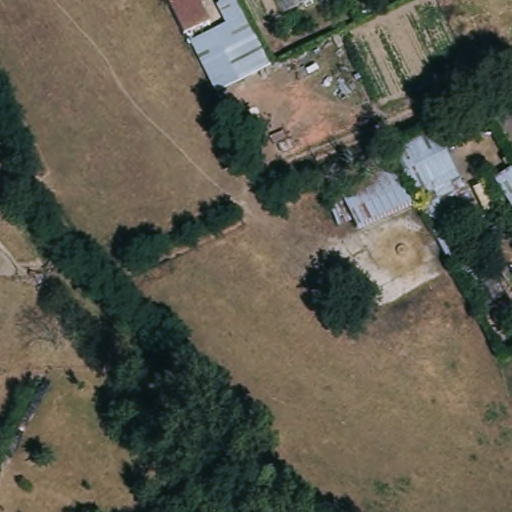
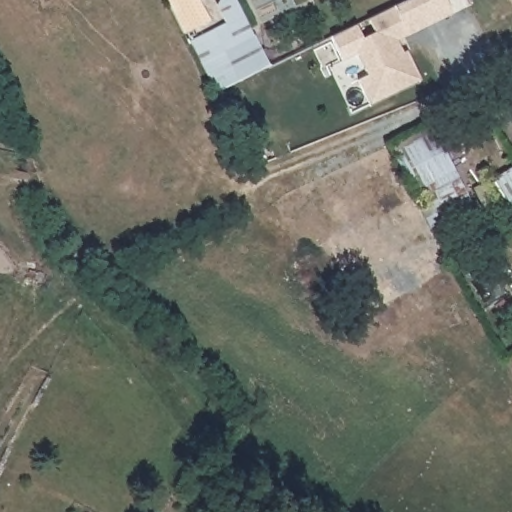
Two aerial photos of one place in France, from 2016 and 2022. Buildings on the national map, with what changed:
unchanged [(206,21),(181,35),(162,0),(196,0),(206,21)]
unchanged [(221,26),(214,0),(215,0),(234,0),(262,69),(212,95),(189,42),(221,26)]
new [(369,105),(357,79),(366,75),(357,54),(342,61),(330,37),(392,7),(407,0),(445,0),(452,14),(406,36),(396,41),(402,53),(407,51),(420,80),(369,105)]
new [(433,128),(459,175),(417,198),(392,150),(433,128)]
unchanged [(394,171),(411,207),(357,234),(339,198),(394,171)]

